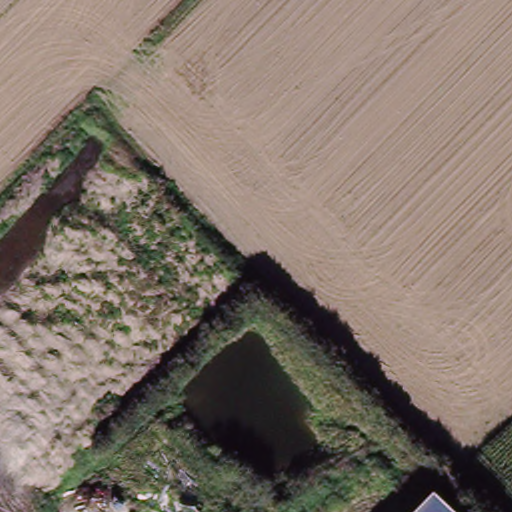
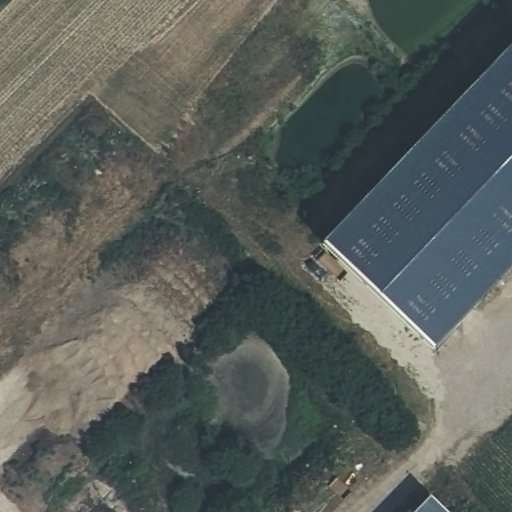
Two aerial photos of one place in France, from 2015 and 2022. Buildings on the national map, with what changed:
new [(432,352),(323,244),(512,46),(512,269),(432,352)]
unchanged [(436,492),(456,512),(417,512),(436,492)]

